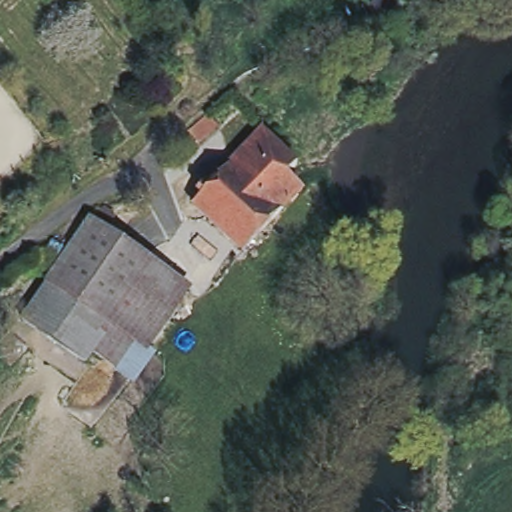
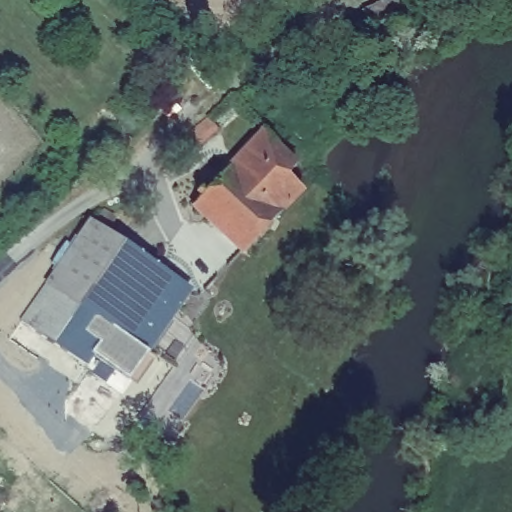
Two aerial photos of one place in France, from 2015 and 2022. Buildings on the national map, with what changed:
unchanged [(376,0),(399,0),(405,15),(368,25),(361,6),(376,0)]
unchanged [(266,130),(302,163),(293,174),(307,189),(285,214),(233,166),(266,130)]
unchanged [(197,205),(233,166),(285,214),(249,253),(197,205)]
unchanged [(135,331),(115,360),(92,344),(85,355),(22,312),(55,264),(90,214),(105,200),(115,210),(102,222),(188,281),(175,301),(148,340),(135,331)]

